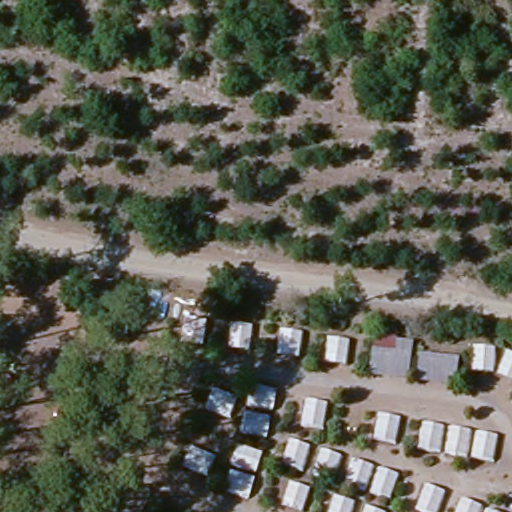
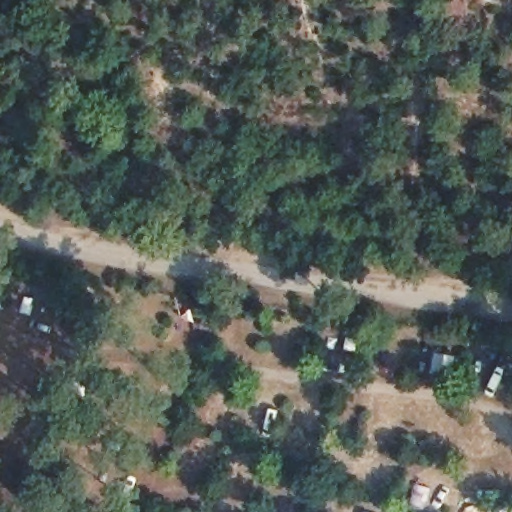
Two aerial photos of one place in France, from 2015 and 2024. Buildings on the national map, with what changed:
[]

